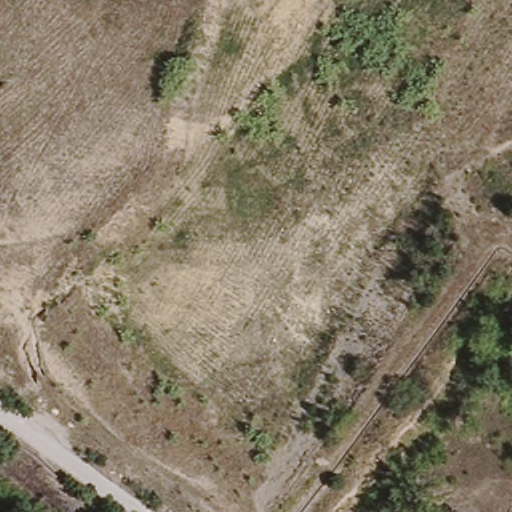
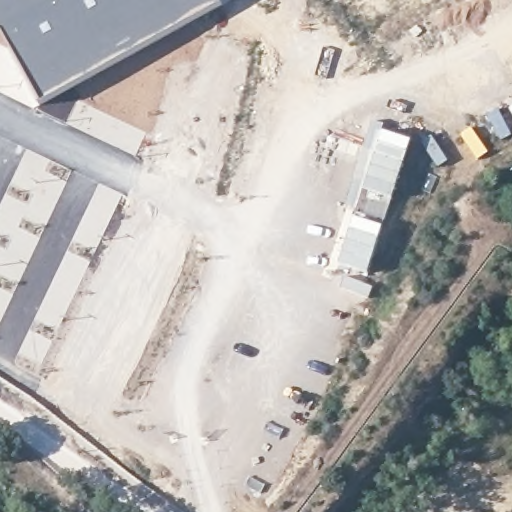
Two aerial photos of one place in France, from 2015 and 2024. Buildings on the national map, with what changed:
new [(42,108),(2,31),(0,30),(0,0),(218,0),(222,7),(42,108)]

